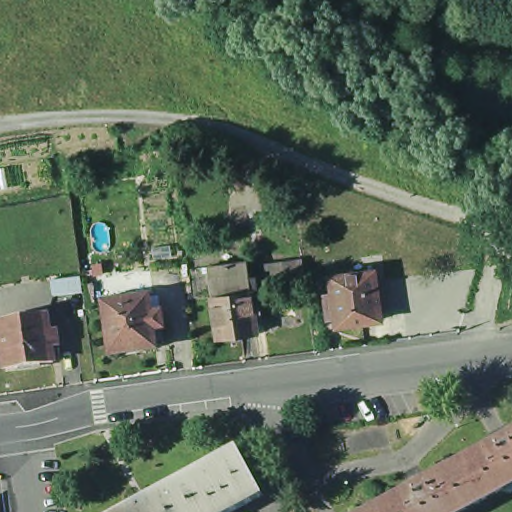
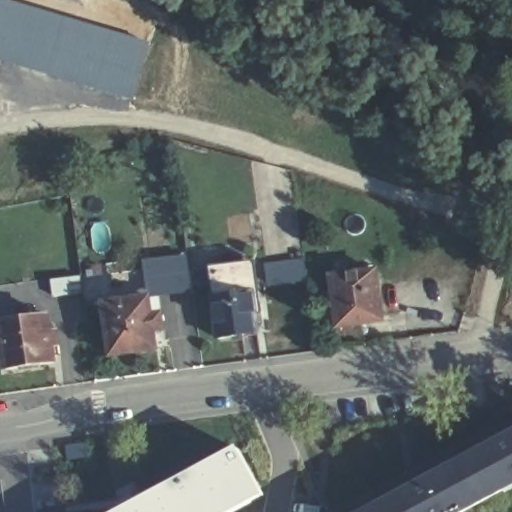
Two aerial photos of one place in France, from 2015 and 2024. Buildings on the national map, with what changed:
new [(133,101),(37,71),(0,61),(0,0),(7,0),(150,44),(133,101)]
new [(141,259),(187,253),(192,295),(145,297),(141,259)]
unchanged [(255,310),(249,310),(251,332),(212,336),(205,265),(249,260),(255,310)]
new [(302,265),(304,281),(268,285),(266,270),(302,265)]
unchanged [(370,268),(376,316),(332,323),(325,274),(370,268)]
unchanged [(78,276),(80,293),(53,296),(51,280),(78,276)]
unchanged [(160,335),(150,336),(152,354),(101,358),(95,300),(145,297),(148,320),(160,320),(160,335)]
unchanged [(0,368),(0,323),(41,319),(43,337),(53,335),(55,350),(46,350),(48,366),(0,372),(0,368)]
unchanged [(512,445),(512,491),(486,505),(468,468),(512,445)]
unchanged [(225,458),(237,452),(261,496),(232,512),(129,512),(226,460),(225,458)]
unchanged [(486,505),(472,512),(385,512),(385,511),(468,468),(486,505)]
unchanged [(384,512),(385,511),(385,512),(384,512)]

